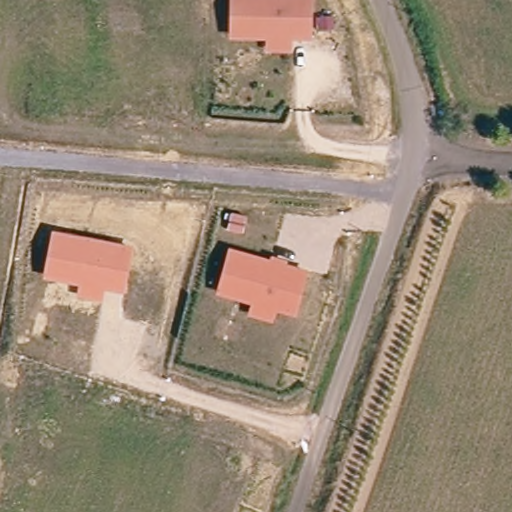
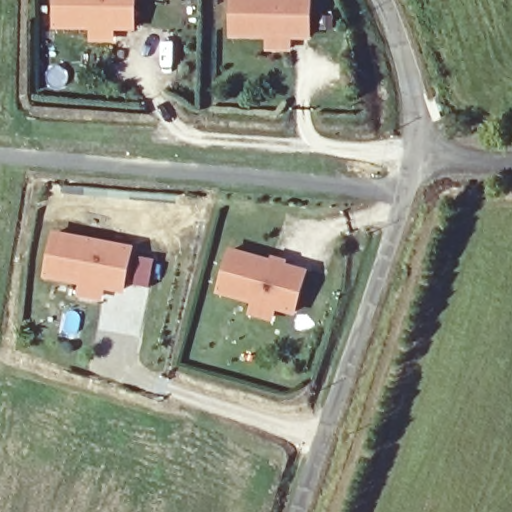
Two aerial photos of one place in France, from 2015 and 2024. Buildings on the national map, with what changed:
new [(57,0),(135,0),(133,30),(113,30),(113,41),(93,40),(93,29),(56,28),(57,0)]
unchanged [(295,37),(295,49),(266,47),(266,35),(232,34),(233,0),(316,0),(315,38),(295,37)]
unchanged [(52,229),(134,244),(125,293),(104,289),(102,303),(75,298),(77,284),(43,279),(52,229)]
unchanged [(229,248),(269,259),(270,254),(289,259),(287,264),(310,272),(298,317),(277,310),(273,322),(247,315),(250,303),(216,293),(229,248)]

